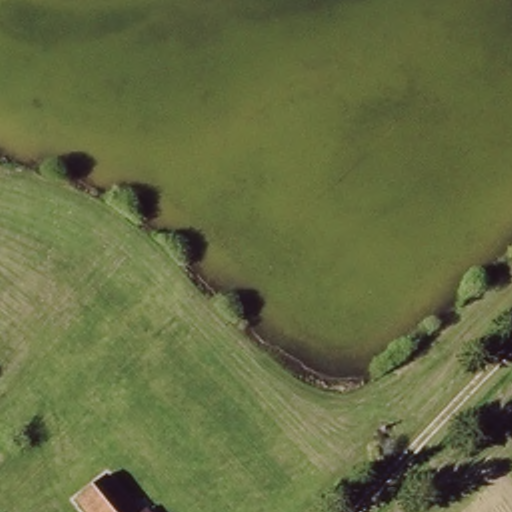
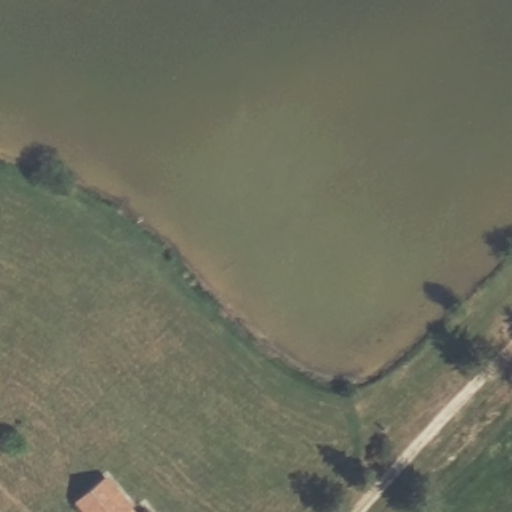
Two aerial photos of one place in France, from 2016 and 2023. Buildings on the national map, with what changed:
unchanged [(87,505),(100,494),(106,489),(129,512),(94,512),(87,505)]
unchanged [(146,510),(148,512),(144,512),(146,510)]

